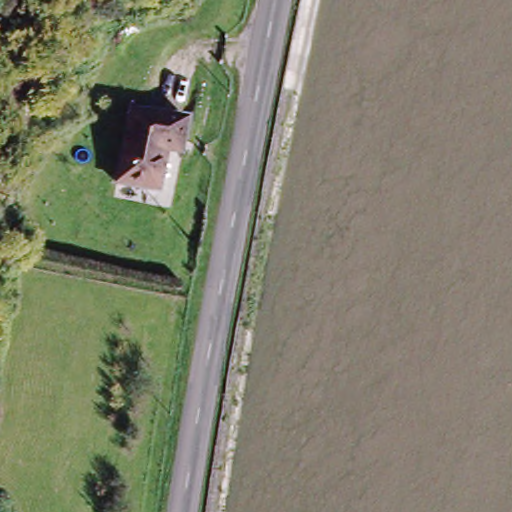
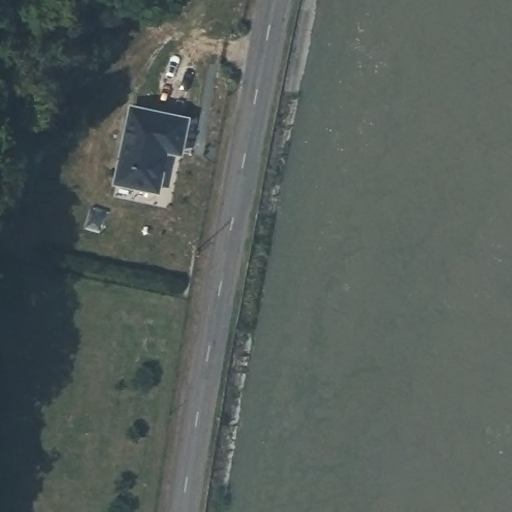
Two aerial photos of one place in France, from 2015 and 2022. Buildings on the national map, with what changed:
unchanged [(185,121),(179,150),(164,146),(153,195),(111,185),(130,107),(185,121)]
unchanged [(107,264),(102,283),(87,279),(91,260),(107,264)]

